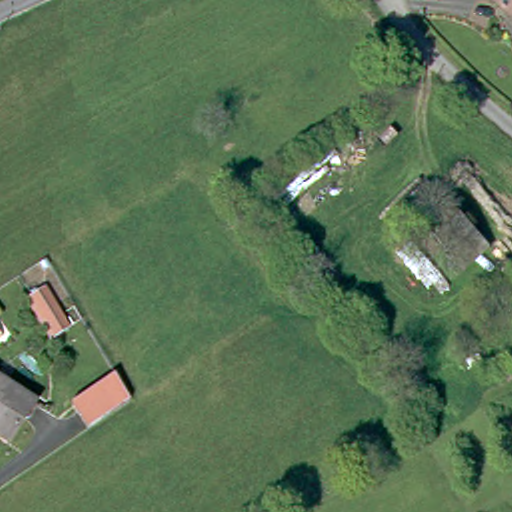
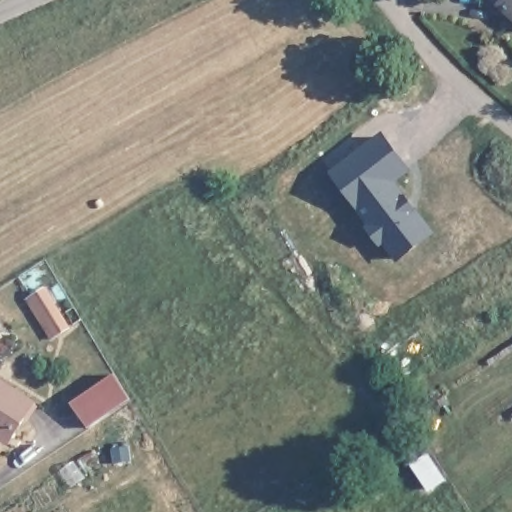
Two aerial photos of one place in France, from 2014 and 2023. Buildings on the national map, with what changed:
unchanged [(493,0),(512,0),(512,15),(493,0)]
new [(384,140),(407,174),(394,186),(431,235),(399,261),(386,243),(382,246),(371,232),(374,229),(361,209),(371,200),(349,168),(384,140)]
unchanged [(32,300),(45,292),(63,324),(50,332),(32,300)]
unchanged [(0,320),(12,338),(0,345),(0,320)]
unchanged [(136,404),(91,436),(77,417),(122,382),(136,404)]
unchanged [(2,454),(0,453),(0,398),(27,416),(2,454)]

